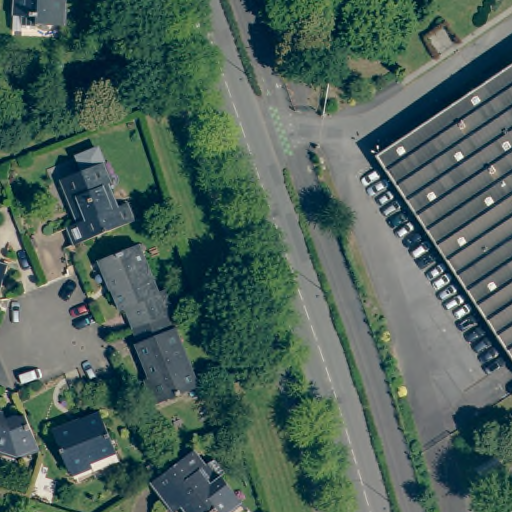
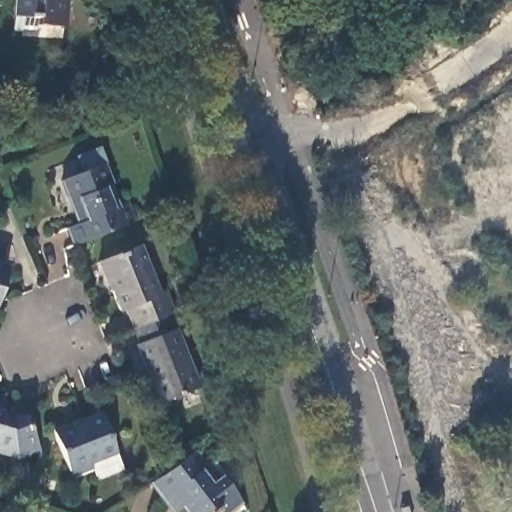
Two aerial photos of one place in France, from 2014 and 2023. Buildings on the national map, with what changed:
unchanged [(11,27),(13,0),(64,0),(62,23),(34,22),(34,27),(20,26),(20,28),(11,27)]
unchanged [(82,72),(98,66),(106,82),(90,89),(82,72)]
demolished [(512,67),(512,351),(380,157),(512,67)]
unchanged [(65,228),(77,224),(60,181),(82,172),(76,157),(96,150),(110,184),(105,186),(114,209),(125,204),(132,222),(72,246),(65,228)]
unchanged [(167,317),(134,331),(126,310),(122,311),(101,262),(142,247),(160,293),(166,292),(175,314),(167,317)]
unchanged [(9,267),(0,296),(0,264),(9,267)]
unchanged [(167,317),(173,331),(175,330),(198,387),(155,405),(146,381),(151,379),(138,345),(140,344),(134,331),(167,317)]
unchanged [(34,441),(14,449),(11,442),(0,446),(0,408),(3,417),(21,411),(34,441)]
unchanged [(72,471),(70,472),(53,434),(101,415),(116,452),(91,462),(93,467),(73,475),(72,471)]
unchanged [(204,470),(214,487),(222,482),(236,503),(223,512),(186,512),(178,502),(170,507),(155,482),(161,477),(196,452),(207,468),(204,470)]

